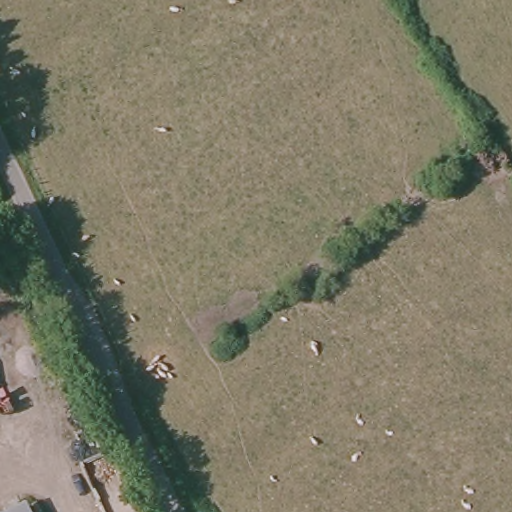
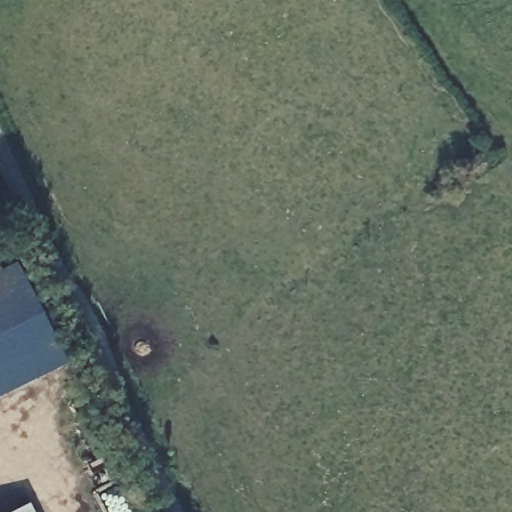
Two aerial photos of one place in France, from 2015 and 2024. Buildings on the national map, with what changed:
new [(13,260),(60,369),(0,394),(0,266),(13,260)]
unchanged [(28,512),(10,512),(25,505),(28,512)]

